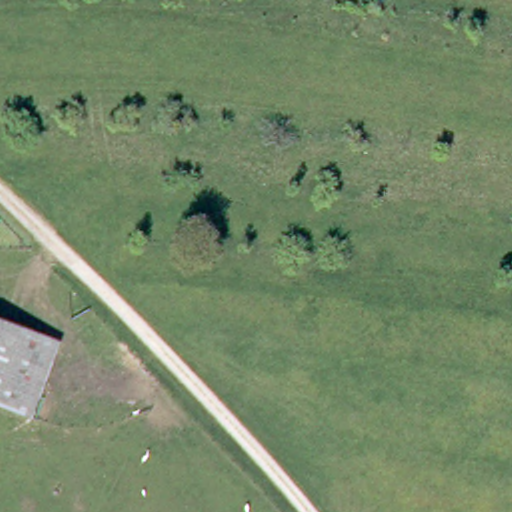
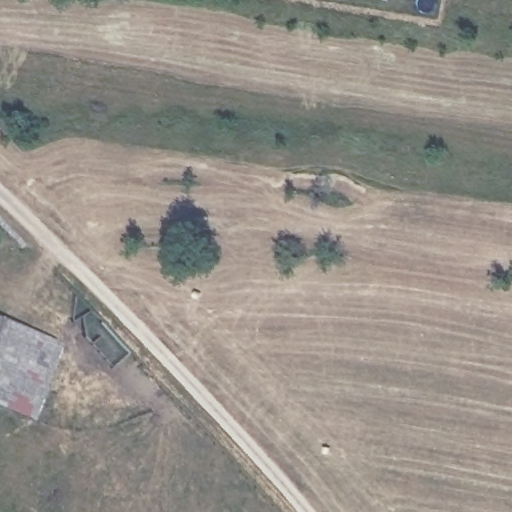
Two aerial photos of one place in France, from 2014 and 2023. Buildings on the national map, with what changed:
unchanged [(32,412),(0,400),(0,314),(60,337),(32,412)]

